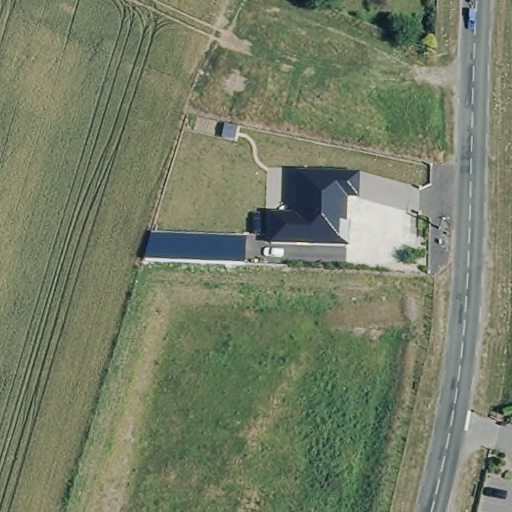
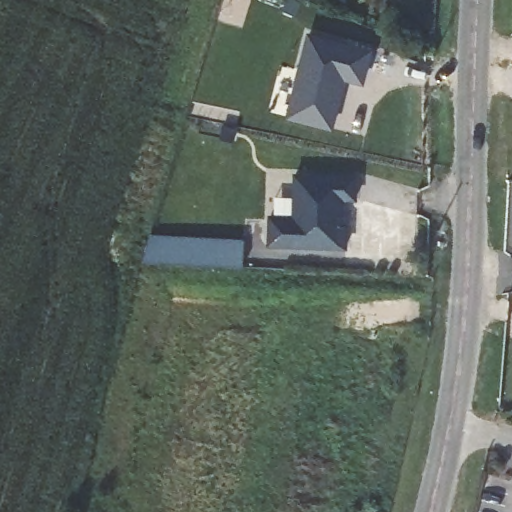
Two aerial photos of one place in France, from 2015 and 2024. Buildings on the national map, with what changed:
new [(308,32),(374,47),(364,85),(346,80),(333,129),(286,117),(308,32)]
unchanged [(357,200),(346,200),(345,225),(348,224),(348,248),(266,245),(267,214),(288,214),(288,174),(358,175),(357,200)]
unchanged [(244,244),(243,269),(143,264),(150,239),(244,244)]

